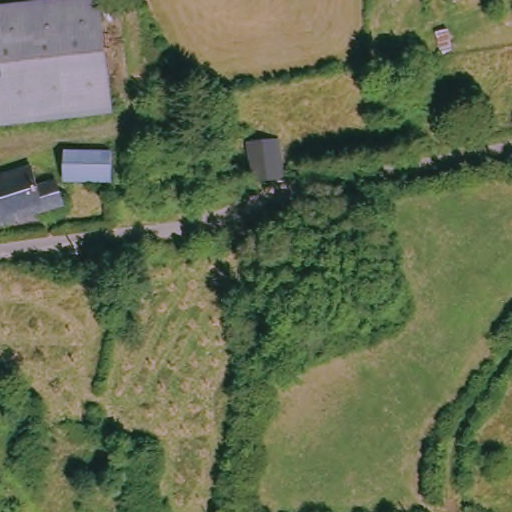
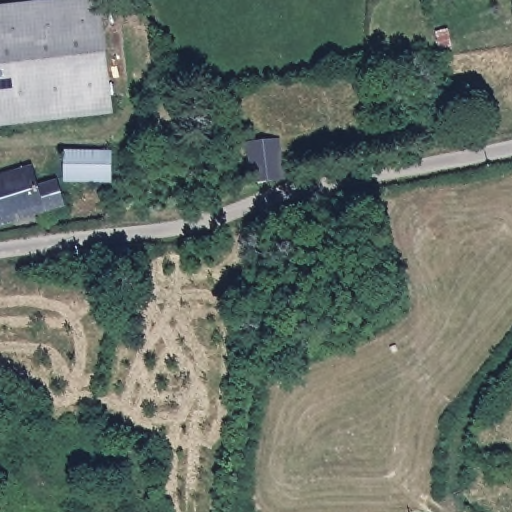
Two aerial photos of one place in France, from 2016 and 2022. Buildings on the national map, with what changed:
unchanged [(66,117),(0,124),(0,0),(96,0),(108,101),(110,112),(66,117)]
unchanged [(448,0),(449,0),(449,1),(448,0)]
unchanged [(246,181),(246,140),(272,141),(273,180),(246,181)]
unchanged [(106,177),(69,179),(65,152),(103,147),(106,177)]
unchanged [(0,223),(0,182),(29,174),(34,191),(49,190),(51,209),(0,223)]

